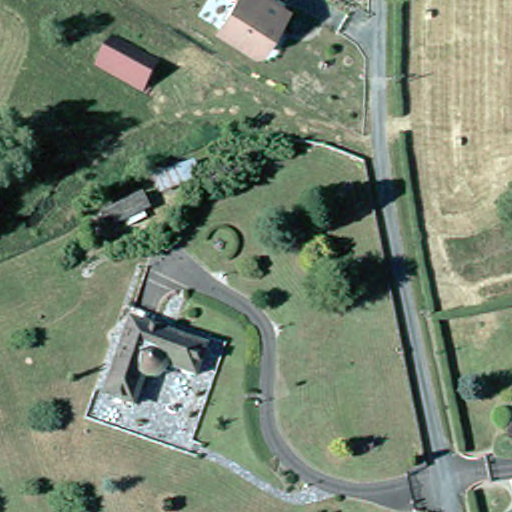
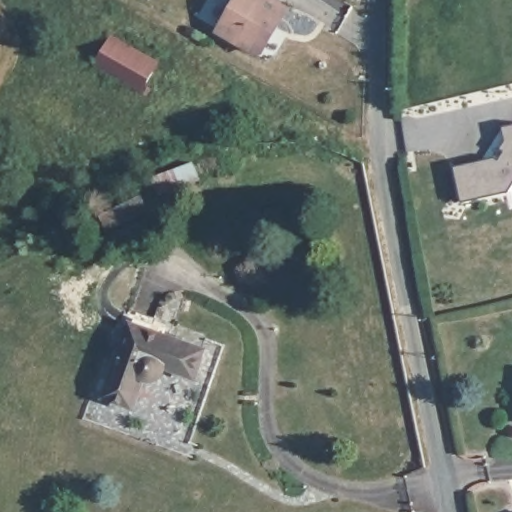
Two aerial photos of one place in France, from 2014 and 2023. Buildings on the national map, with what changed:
unchanged [(271,32),(264,44),(257,45),(219,22),(232,0),(285,0),(275,17),(280,19),(271,32)]
unchanged [(115,29),(160,56),(141,85),(97,58),(115,29)]
new [(507,192),(462,202),(455,165),(496,155),(498,158),(505,148),(501,146),(507,139),(503,125),(512,123),(512,186),(507,192)]
unchanged [(107,395),(118,367),(135,322),(206,350),(198,375),(170,364),(170,365),(169,369),(168,372),(166,375),(163,377),(160,379),(156,380),(153,380),(150,379),(146,377),(136,405),(128,403),(107,395)]

